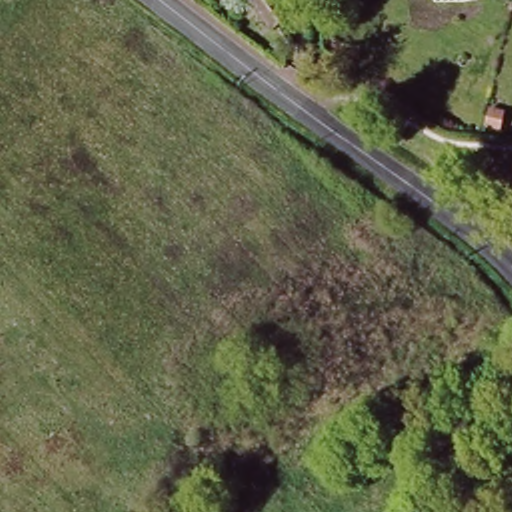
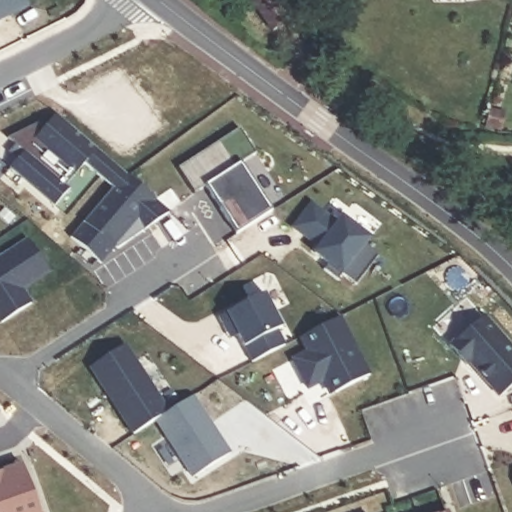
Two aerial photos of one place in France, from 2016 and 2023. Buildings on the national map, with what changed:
new [(29,5),(0,20),(0,0),(26,0),(29,5)]
new [(251,0),(277,0),(290,18),(272,31),(250,1),(251,0)]
new [(115,250),(113,247),(100,263),(70,237),(83,224),(114,189),(84,163),(65,186),(68,189),(54,205),(10,167),(17,161),(8,152),(16,144),(8,137),(41,121),(46,125),(56,113),(127,175),(143,182),(156,203),(168,212),(115,250)]
new [(235,234),(204,185),(193,192),(178,167),(238,129),(255,155),(241,163),(272,211),(235,234)]
new [(338,223),(343,217),(370,239),(365,244),(379,255),(356,285),(343,274),(338,280),(326,271),(331,265),(315,253),(319,247),(294,227),(312,204),(338,223)]
new [(24,290),(33,302),(0,323),(0,255),(26,238),(50,273),(24,290)]
new [(249,364),(242,348),(243,347),(236,335),(229,338),(218,316),(227,313),(264,295),(281,326),(273,331),(284,347),(249,364)]
new [(512,386),(501,396),(465,356),(462,359),(450,346),(484,315),(512,346),(512,386)]
new [(371,374),(336,392),(329,378),(309,388),(293,359),(308,351),(301,337),(341,316),(371,374)]
new [(125,345),(169,412),(134,434),(115,405),(120,402),(112,391),(108,393),(90,367),(125,345)]
new [(193,478),(156,420),(169,412),(193,395),(229,452),(193,478)]
new [(0,512),(0,472),(23,464),(40,512),(0,512)]
new [(449,512),(448,512),(449,511),(449,512)]

